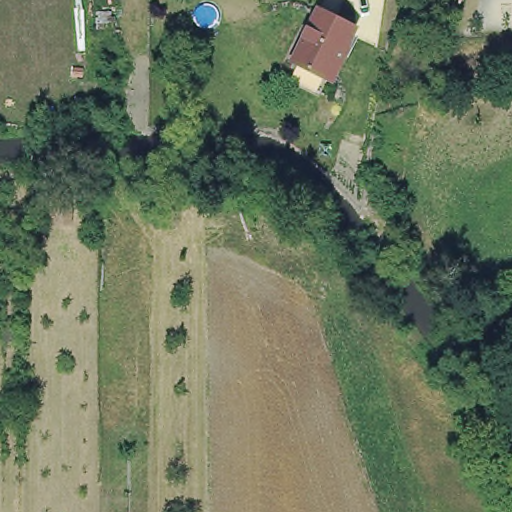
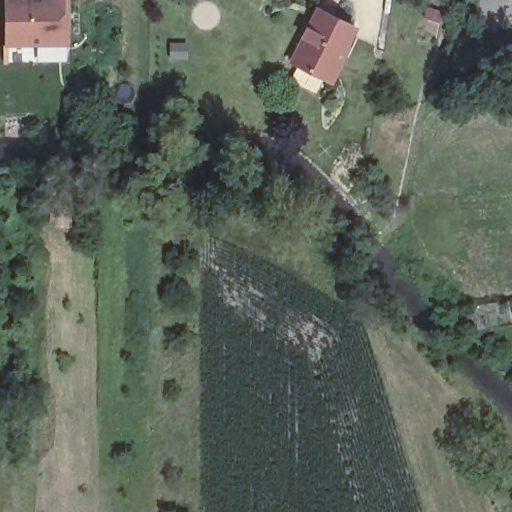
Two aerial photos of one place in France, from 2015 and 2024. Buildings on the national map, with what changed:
new [(5,46),(6,0),(71,0),(70,45),(5,46)]
unchanged [(291,60),(317,7),(355,26),(338,60),(340,61),(331,80),(291,60)]

